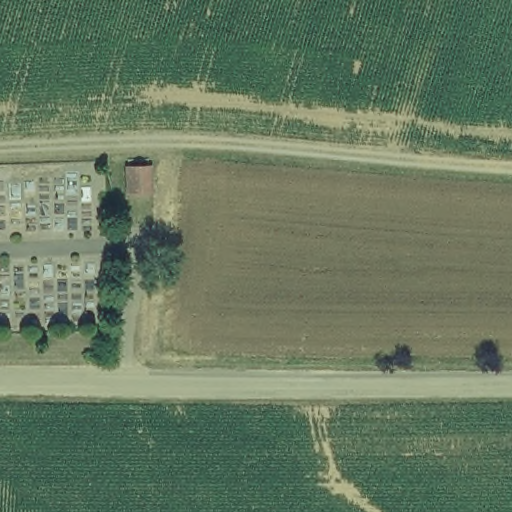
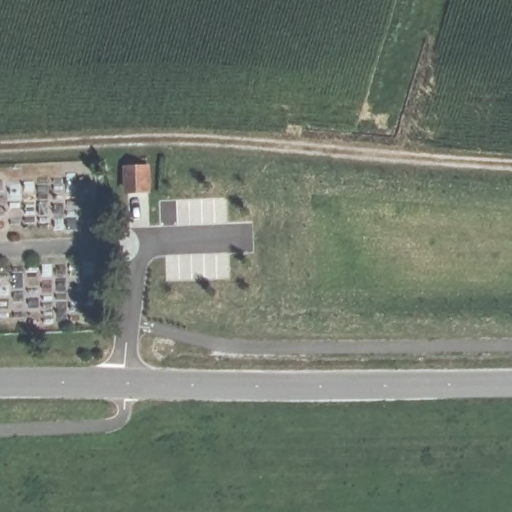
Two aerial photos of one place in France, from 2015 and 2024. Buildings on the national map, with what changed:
unchanged [(148,199),(125,197),(127,166),(149,167),(148,199)]

